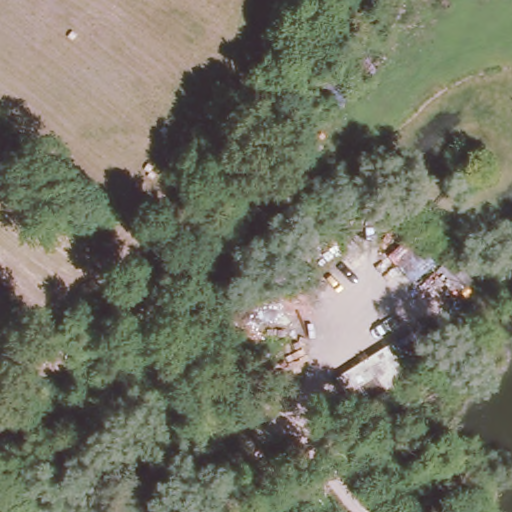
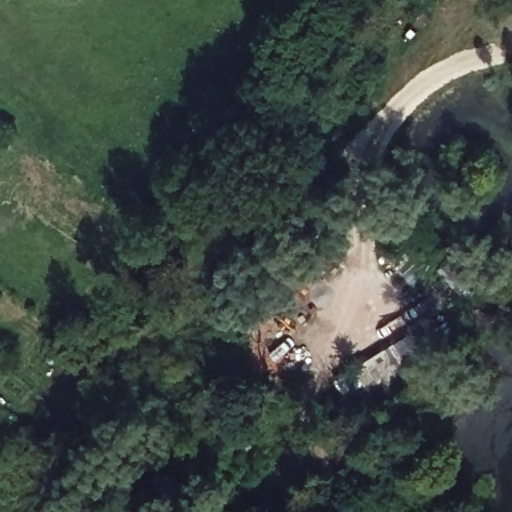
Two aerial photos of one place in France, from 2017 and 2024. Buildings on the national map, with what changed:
unchanged [(339,393),(376,374),(374,368),(384,359),(388,362),(435,334),(446,350),(439,356),(443,363),(354,416),(339,393)]
unchanged [(56,372),(48,383),(38,376),(60,346),(70,353),(56,372)]

